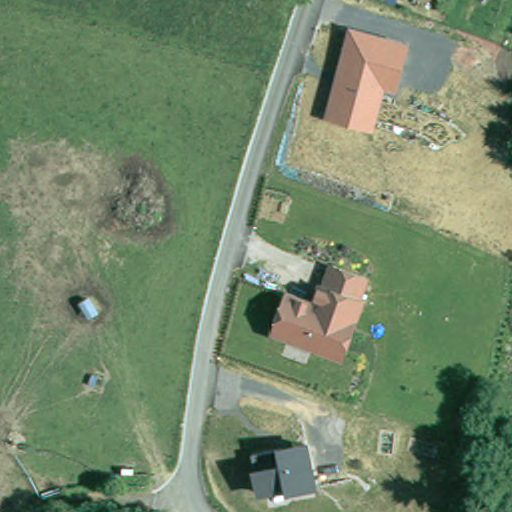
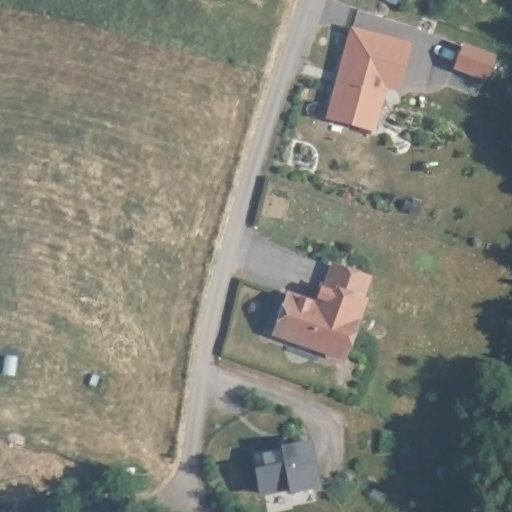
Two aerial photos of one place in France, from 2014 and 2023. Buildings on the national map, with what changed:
unchanged [(410,41),(397,92),(385,89),(374,132),(326,121),(348,25),(410,41)]
unchanged [(316,295),(332,257),(374,276),(347,362),(270,333),(287,287),(316,295)]
unchanged [(311,439),(320,488),(289,494),(288,488),(258,494),(250,451),(311,439)]

